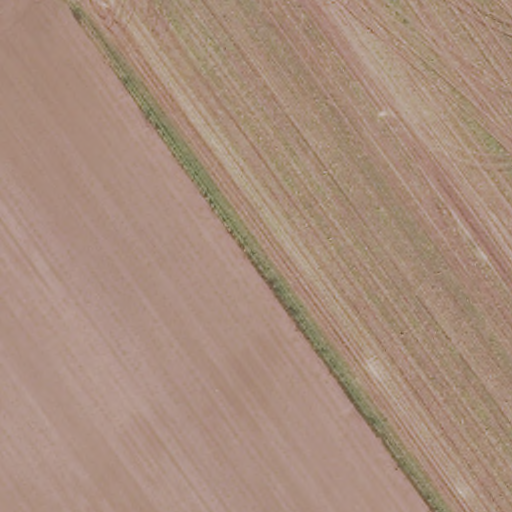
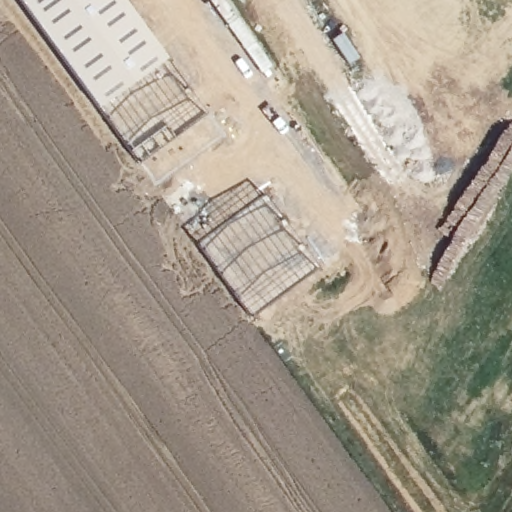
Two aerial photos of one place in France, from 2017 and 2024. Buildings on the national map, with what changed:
new [(164,60),(206,113),(139,162),(99,108),(98,108),(18,0),(124,0),(167,58),(164,60)]
new [(316,267),(249,319),(192,243),(261,193),(316,267)]

